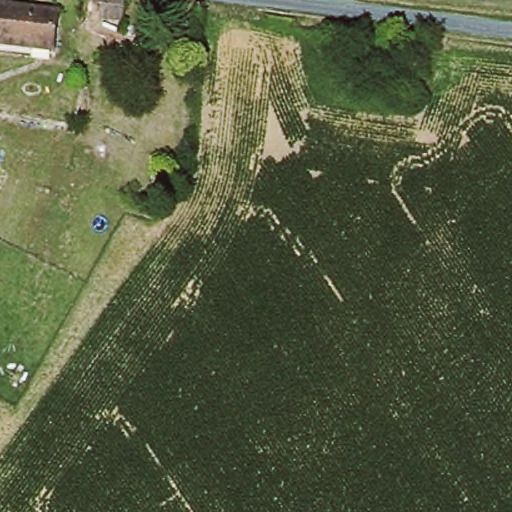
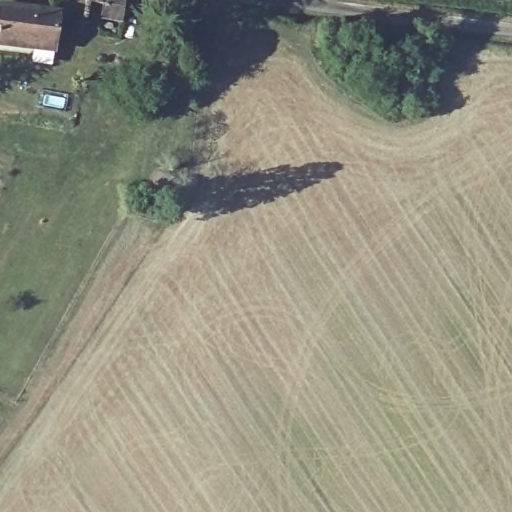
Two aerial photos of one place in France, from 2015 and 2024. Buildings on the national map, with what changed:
unchanged [(88,0),(128,0),(125,13),(87,6),(88,0)]
unchanged [(0,46),(0,23),(3,7),(62,16),(56,54),(0,46)]

